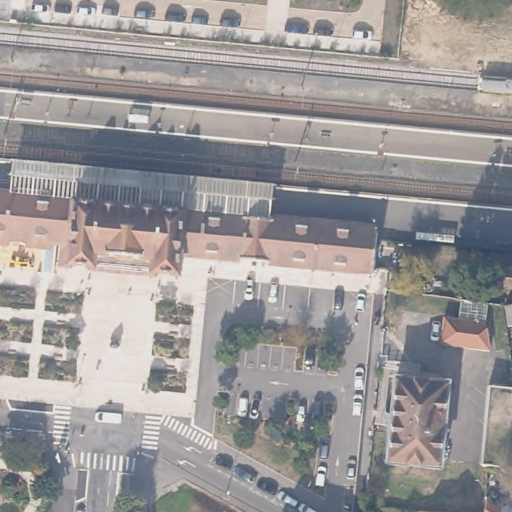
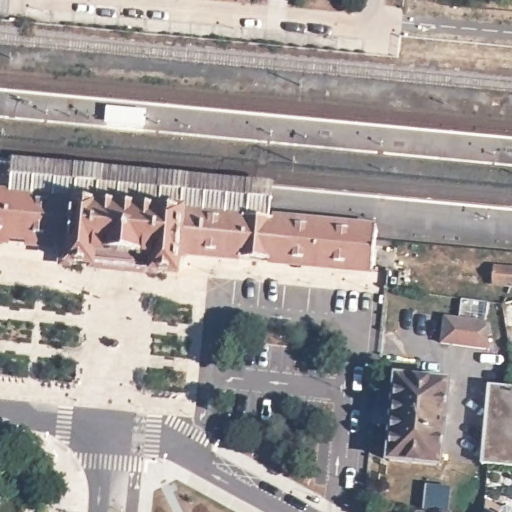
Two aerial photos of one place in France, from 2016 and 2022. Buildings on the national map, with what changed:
unchanged [(184,257),(182,275),(72,267),(74,252),(0,246),(0,197),(16,199),(20,162),(282,185),(280,221),(382,229),(378,277),(184,257)]
unchanged [(512,264),(512,287),(493,285),(496,262),(512,264)]
unchanged [(490,305),(488,324),(492,352),(443,347),(446,320),(461,322),(462,302),(490,305)]
unchanged [(507,303),(512,303),(512,324),(511,325),(507,303)]
unchanged [(450,381),(443,464),(390,459),(393,423),(388,422),(389,412),(395,412),(397,377),(450,381)]
unchanged [(492,386),(512,387),(512,466),(506,466),(489,465),(486,465),(492,386)]

